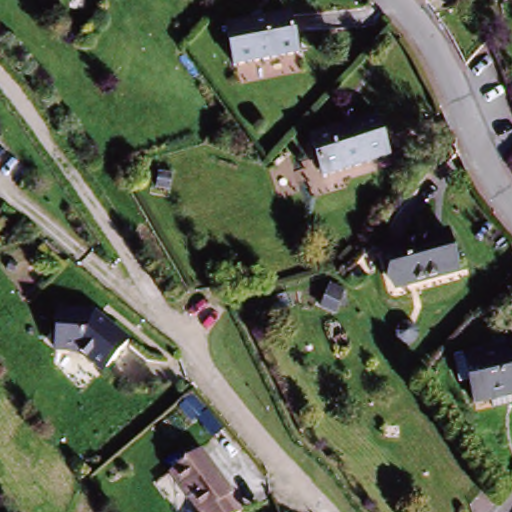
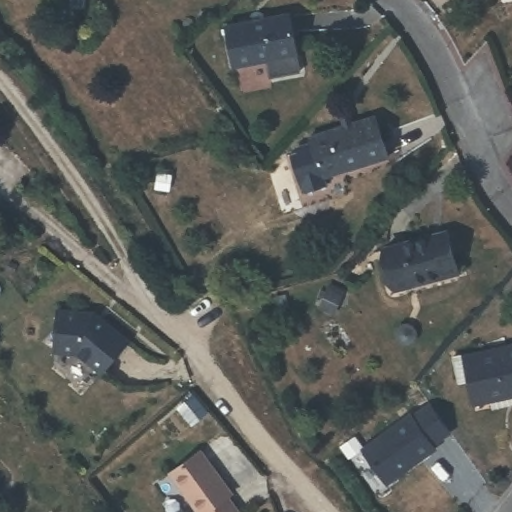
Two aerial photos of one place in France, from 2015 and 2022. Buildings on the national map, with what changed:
unchanged [(229,72),(218,29),(278,14),(289,57),(229,72)]
unchanged [(330,175),(319,133),(377,117),(388,159),(330,175)]
unchanged [(389,285),(378,245),(429,231),(440,272),(389,285)]
unchanged [(336,288),(327,310),(314,304),(323,282),(336,288)]
unchanged [(98,318),(98,322),(104,327),(105,325),(131,344),(106,375),(81,356),(58,353),(63,314),(98,318)]
unchanged [(387,332),(387,331),(388,331),(388,330),(389,330),(389,329),(389,328),(390,328),(391,328),(391,327),(392,327),(393,327),(394,327),(395,327),(396,327),(397,327),(398,327),(399,327),(400,327),(401,328),(402,328),(402,329),(403,330),(404,331),(404,332),(405,333),(405,334),(406,335),(406,336),(406,337),(406,338),(405,340),(404,341),(404,342),(403,343),(402,344),(402,345),(401,345),(400,346),(399,346),(398,346),(398,347),(397,347),(396,347),(394,347),(393,347),(393,346),(392,346),(391,346),(391,345),(390,345),(389,345),(389,344),(389,343),(388,343),(388,342),(387,342),(387,341),(386,340),(386,338),(386,337),(386,336),(386,335),(386,333),(387,332)]
unchanged [(494,396),(474,401),(467,377),(458,379),(451,355),(474,348),(475,350),(512,340),(512,399),(497,403),(494,396)]
new [(361,448),(412,412),(414,414),(429,403),(451,434),(434,446),(436,450),(387,485),(361,448)]
unchanged [(171,477),(201,456),(233,498),(228,502),(235,512),(196,512),(171,477)]

